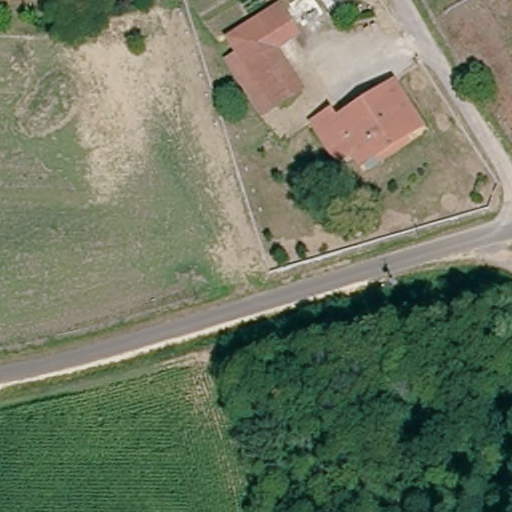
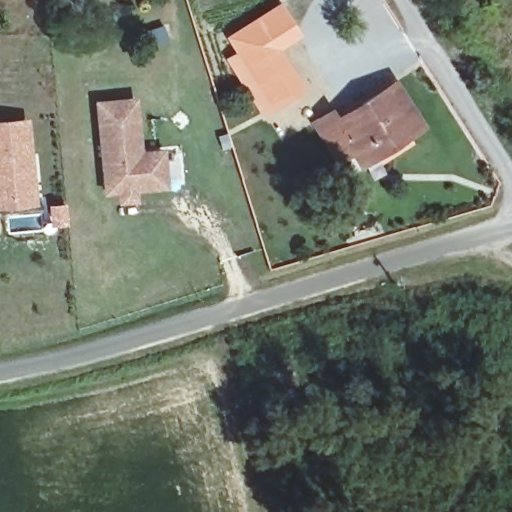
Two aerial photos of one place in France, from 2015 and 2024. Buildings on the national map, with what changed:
unchanged [(237,53),(229,39),(281,6),(296,34),(273,49),(298,89),(270,106),(260,111),(227,59),(237,53)]
unchanged [(359,150),(355,144),(340,155),(315,117),(331,106),(336,114),(395,76),(421,119),(405,129),(410,138),(380,156),(375,148),(362,156),(359,150)]
new [(118,200),(117,190),(104,192),(97,105),(135,102),(139,153),(160,151),(163,186),(132,189),(133,199),(118,200)]
new [(30,159),(34,205),(0,209),(0,128),(27,125),(30,159)]

